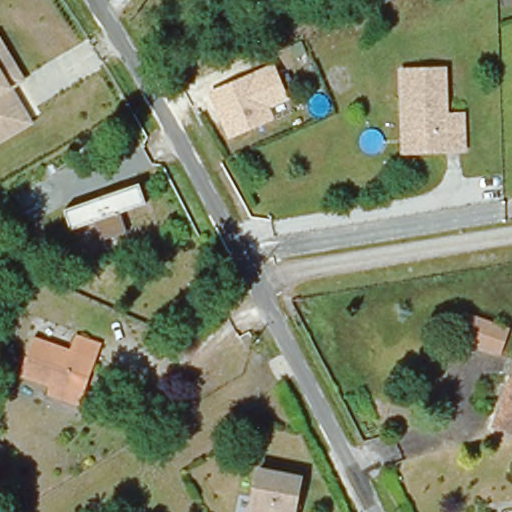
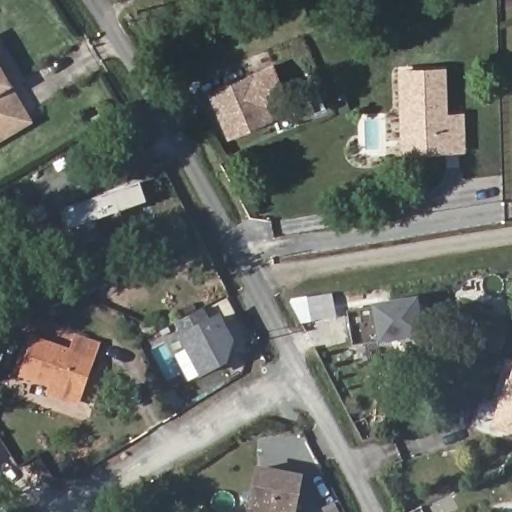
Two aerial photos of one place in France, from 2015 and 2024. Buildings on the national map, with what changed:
unchanged [(0,36),(29,80),(12,90),(32,122),(0,143),(0,36)]
unchanged [(272,109),(276,120),(230,139),(209,92),(275,64),(291,102),(272,109)]
unchanged [(401,138),(399,74),(437,72),(439,117),(457,116),(459,151),(437,152),(401,153),(401,138)]
unchanged [(122,213),(127,231),(101,241),(95,221),(70,228),(65,209),(141,185),(147,203),(122,213)]
new [(379,344),(351,347),(346,312),(374,306),(417,298),(423,336),(379,344)]
new [(228,364),(202,377),(178,334),(173,325),(205,308),(211,318),(219,315),(234,342),(228,364)]
unchanged [(461,310),(508,325),(499,352),(453,337),(461,310)]
unchanged [(66,360),(61,373),(24,359),(33,333),(71,348),(76,333),(104,343),(94,369),(66,360)]
unchanged [(24,359),(61,373),(66,360),(94,369),(80,408),(16,383),(24,359)]
unchanged [(494,440),(486,438),(494,413),(508,369),(512,370),(512,447),(494,440)]
unchanged [(294,512),(244,512),(253,463),(302,472),(294,512)]

